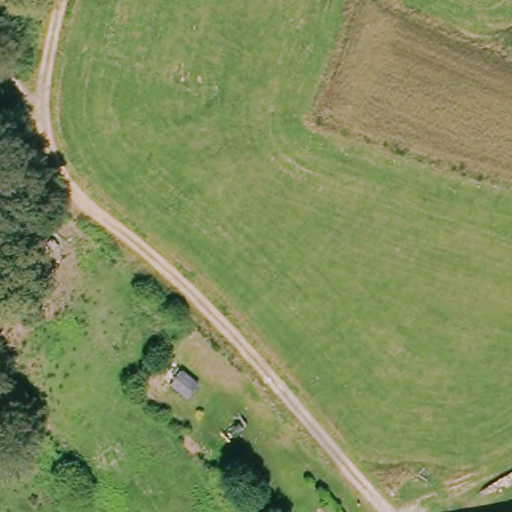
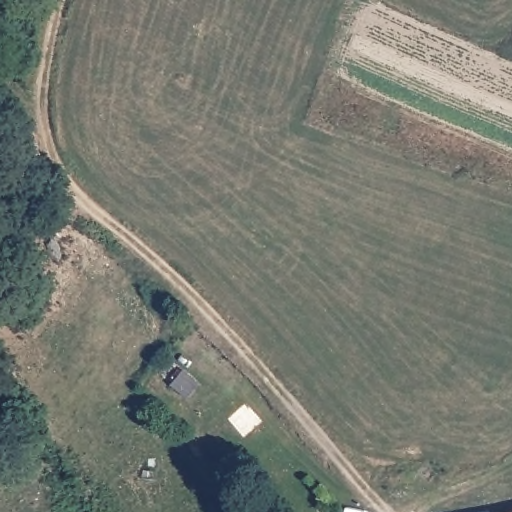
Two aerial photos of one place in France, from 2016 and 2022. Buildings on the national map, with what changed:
unchanged [(512,511),(512,512),(510,512),(512,511)]

